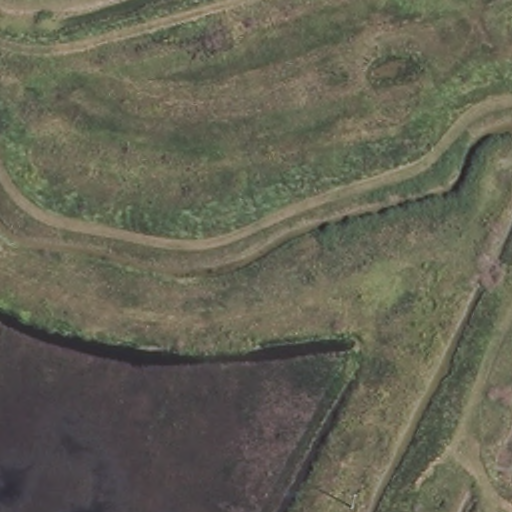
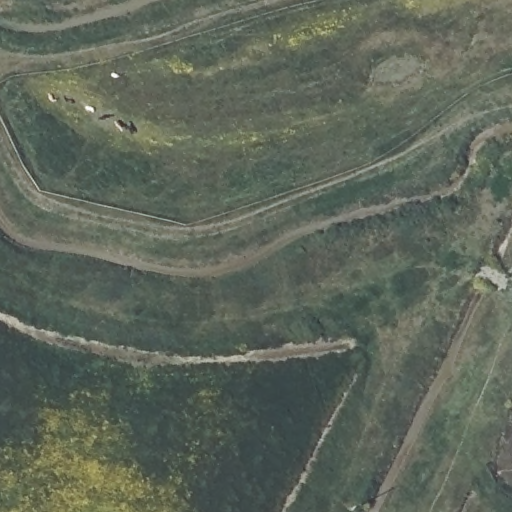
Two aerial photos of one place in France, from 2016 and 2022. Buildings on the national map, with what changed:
[]

